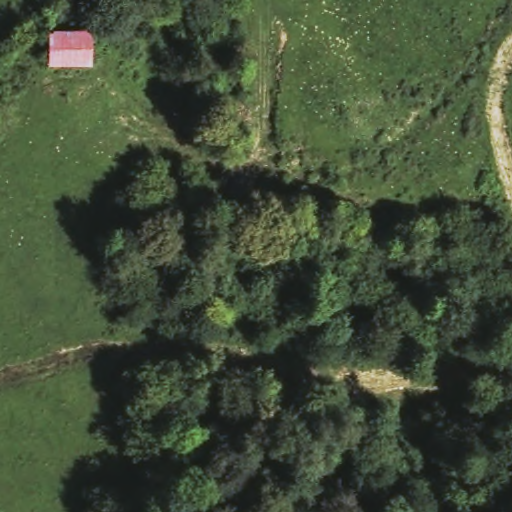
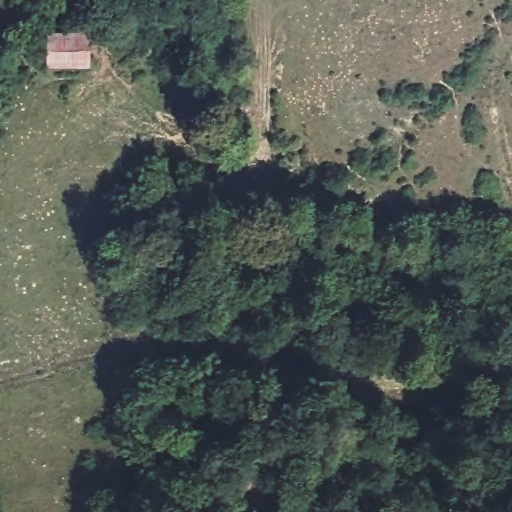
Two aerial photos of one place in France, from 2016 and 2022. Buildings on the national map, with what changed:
unchanged [(35,22),(94,20),(95,44),(95,60),(37,62),(35,22)]

